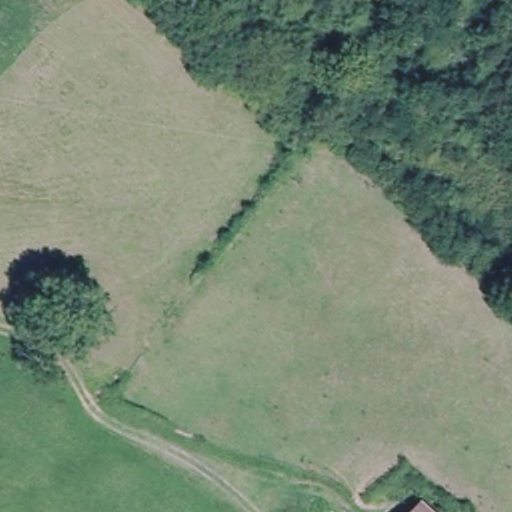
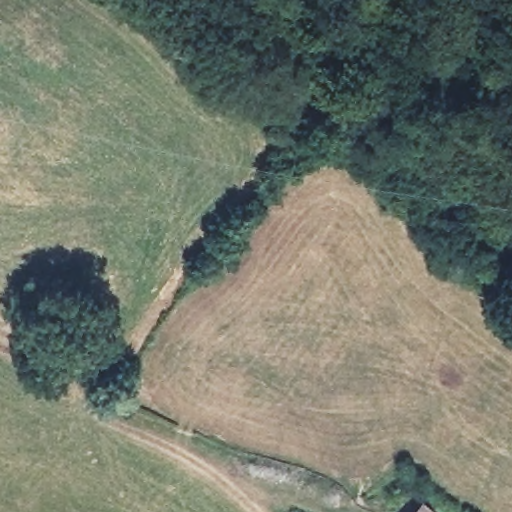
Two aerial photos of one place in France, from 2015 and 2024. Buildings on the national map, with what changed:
unchanged [(420,512),(408,512),(413,507),(420,512)]

